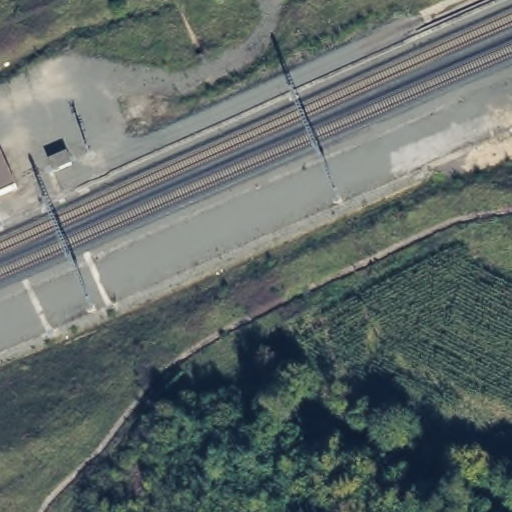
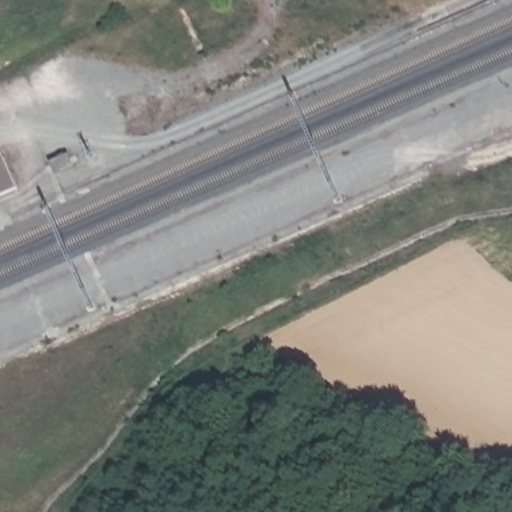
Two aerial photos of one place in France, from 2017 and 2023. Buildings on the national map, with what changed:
unchanged [(18,191),(0,198),(0,151),(18,191)]

